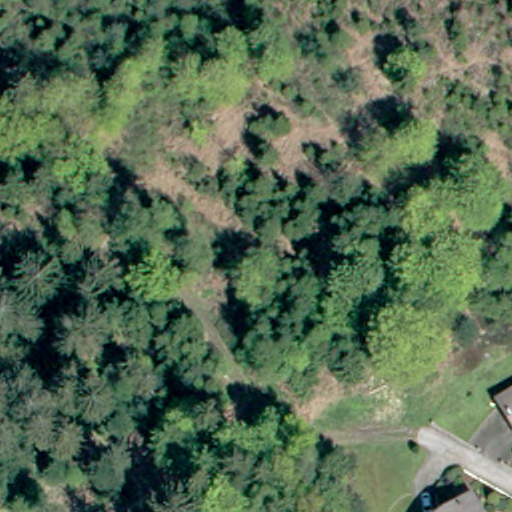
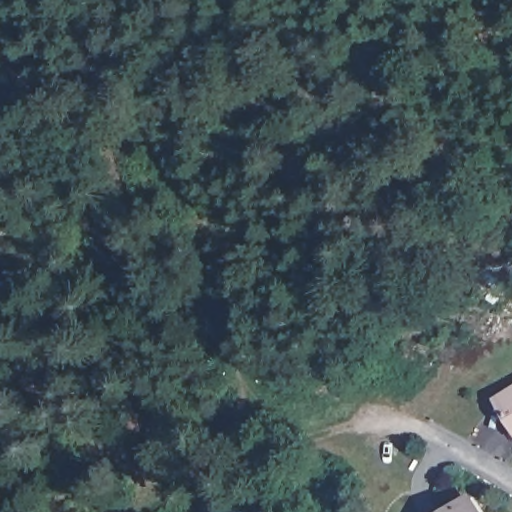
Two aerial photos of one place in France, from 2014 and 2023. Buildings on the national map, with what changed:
unchanged [(512,398),(512,423),(501,405),(512,398)]
unchanged [(479,512),(449,512),(471,498),(479,512)]

